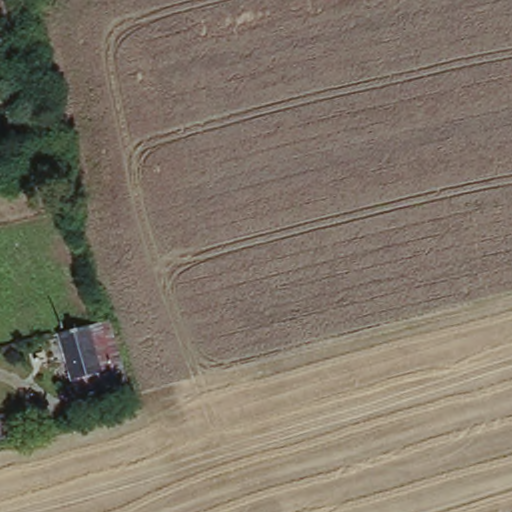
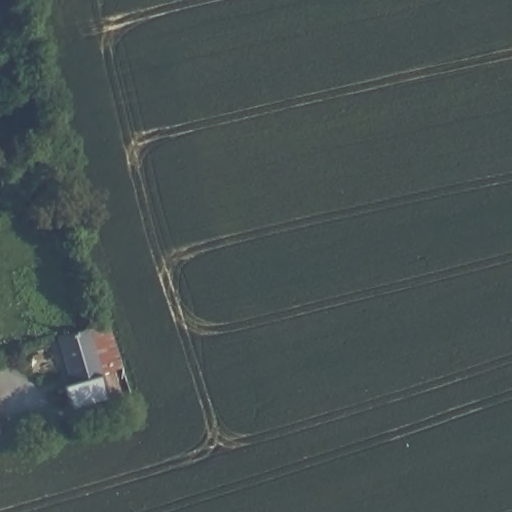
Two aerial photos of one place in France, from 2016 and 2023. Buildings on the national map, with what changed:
unchanged [(105,327),(116,374),(95,380),(97,393),(71,399),(56,339),(101,328),(105,327)]

